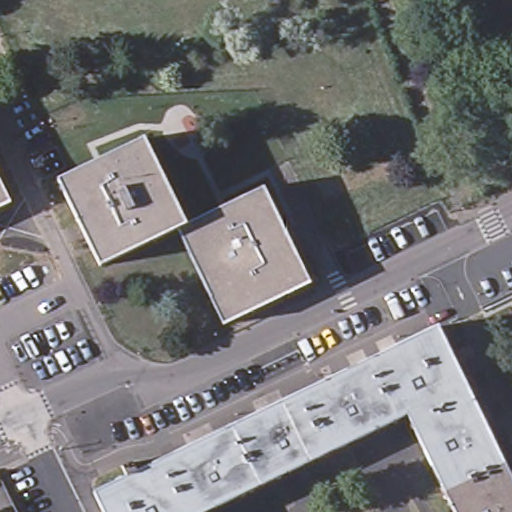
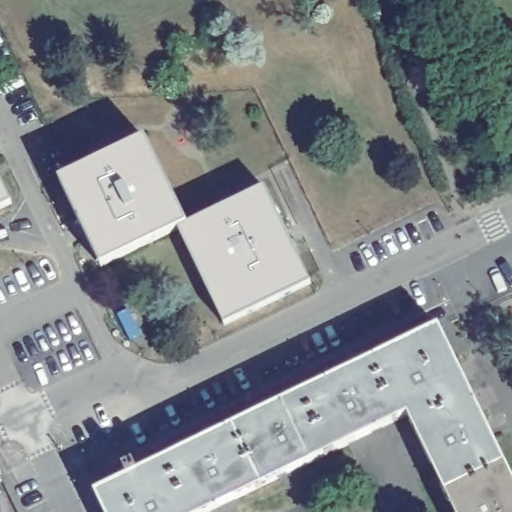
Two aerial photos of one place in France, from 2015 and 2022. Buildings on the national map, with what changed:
unchanged [(210,299),(174,228),(112,259),(99,266),(57,180),(73,172),(142,136),(155,163),(184,222),(260,186),(306,280),(299,284),(222,323),(210,299)]
unchanged [(9,202),(0,206),(0,184),(9,202)]
unchanged [(436,331),(469,399),(408,427),(405,422),(396,426),(366,364),(436,331)]
unchanged [(328,458),(299,395),(366,364),(396,426),(328,458)]
unchanged [(228,428),(299,395),(328,458),(258,491),(228,428)]
unchanged [(504,468),(442,497),(408,427),(469,399),(504,468)]
unchanged [(213,512),(184,512),(159,460),(228,428),(258,491),(213,512)]
unchanged [(88,493),(159,460),(184,512),(98,512),(88,493)]
unchanged [(512,484),(512,512),(449,512),(442,497),(504,468),(512,484)]

